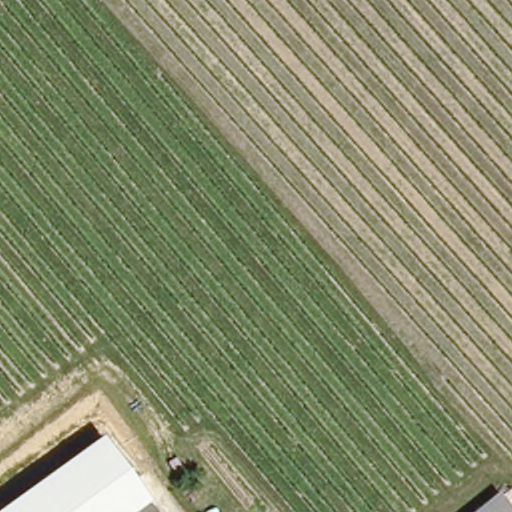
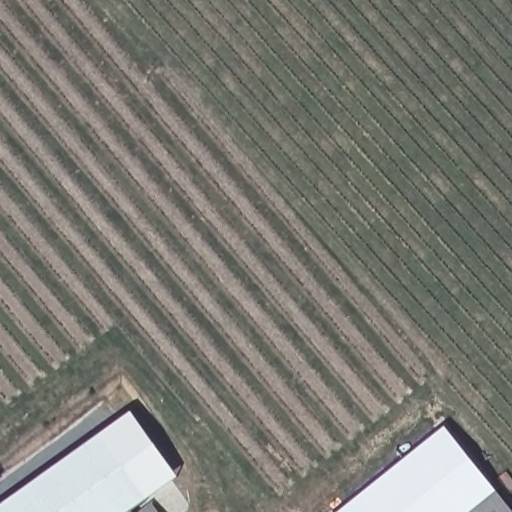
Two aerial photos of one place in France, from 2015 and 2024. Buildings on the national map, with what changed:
new [(99,434),(131,412),(177,476),(145,499),(99,434)]
new [(509,512),(339,512),(442,429),(509,512)]
unchanged [(99,434),(146,499),(154,512),(0,512),(0,505),(99,434)]
demolished [(497,494),(512,511),(512,512),(474,512),(497,494)]

